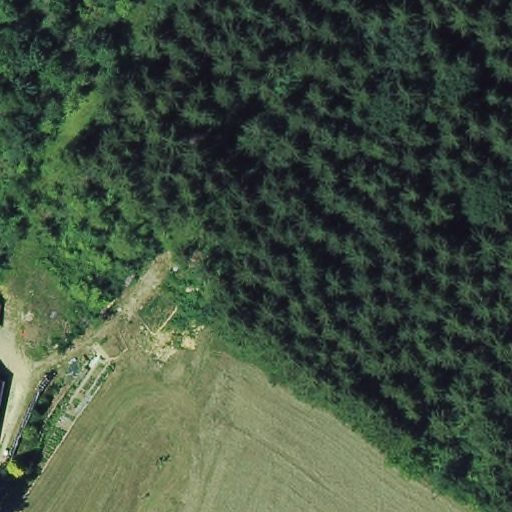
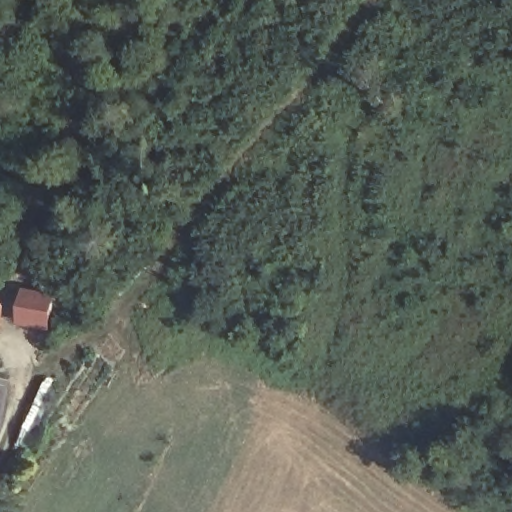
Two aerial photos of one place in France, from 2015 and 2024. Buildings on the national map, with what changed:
new [(17,325),(22,288),(58,293),(52,330),(17,325)]

